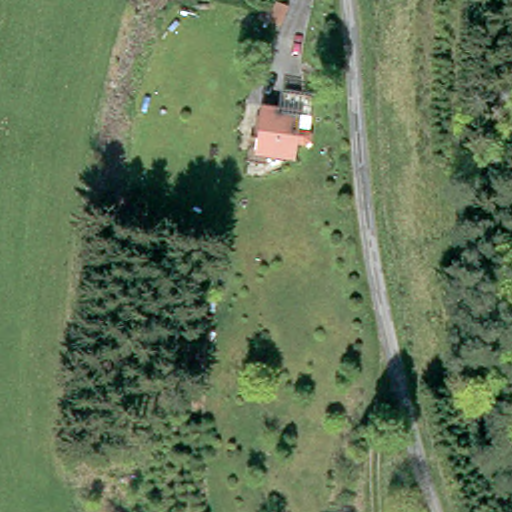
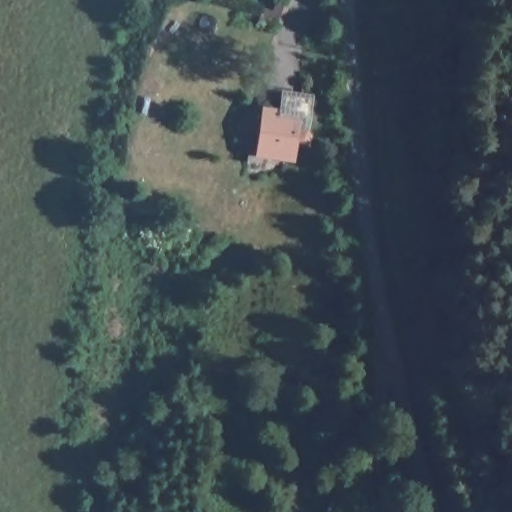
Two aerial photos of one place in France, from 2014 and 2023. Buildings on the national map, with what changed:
unchanged [(293,91),(299,92),(324,95),(322,117),(301,115),(300,133),(315,135),(314,152),(298,151),(297,161),(271,158),(270,164),(243,161),(246,135),(254,135),(255,128),(251,128),(253,109),(265,111),(290,114),(293,91)]

